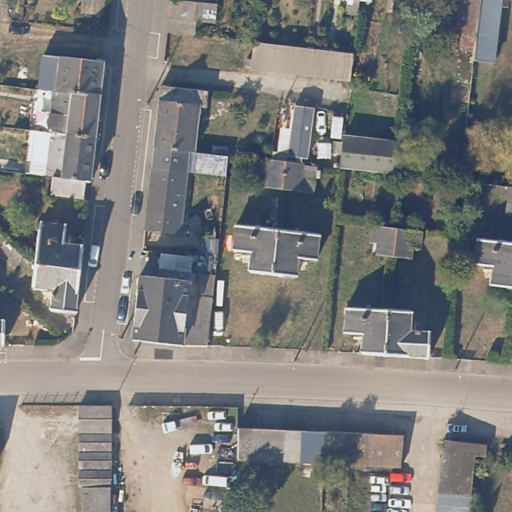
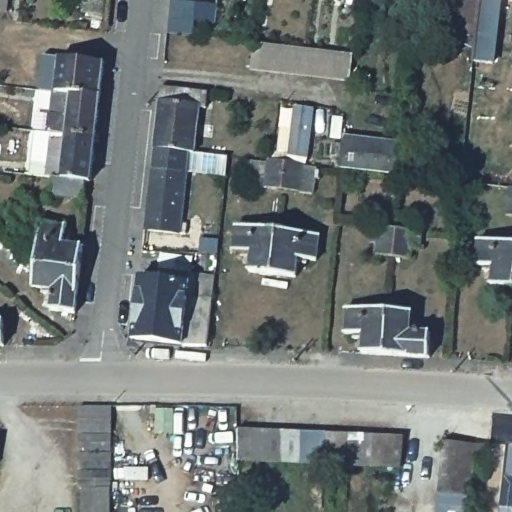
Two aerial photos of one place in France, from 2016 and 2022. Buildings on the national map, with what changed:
unchanged [(0,11),(0,0),(15,0),(14,12),(0,11)]
unchanged [(486,53),(467,50),(473,0),(493,0),(487,46),(486,53)]
unchanged [(174,33),(175,19),(177,1),(220,6),(219,25),(200,23),(198,36),(174,33)]
unchanged [(311,48),(357,54),(354,80),(255,67),(258,41),(311,48)]
unchanged [(60,51),(103,56),(100,91),(57,86),(60,51)]
unchanged [(207,85),(205,102),(198,101),(193,148),(154,144),(160,80),(207,85)]
unchanged [(48,128),(52,86),(57,86),(100,91),(95,133),(67,130),(48,128)]
unchanged [(311,193),(280,189),(247,186),(250,159),(273,161),(275,149),(277,149),(283,110),(295,112),(295,103),(315,106),(307,169),(315,169),(311,193)]
unchanged [(51,190),(53,173),(47,172),(31,170),(32,157),(35,126),(48,128),(67,130),(95,133),(90,177),(85,177),(83,194),(51,190)]
unchanged [(347,141),(404,148),(400,175),(348,169),(344,168),(347,141)]
unchanged [(229,159),(227,176),(215,175),(217,158),(229,159)]
unchanged [(187,168),(180,229),(144,225),(151,164),(187,168)]
unchanged [(511,215),(512,208),(512,215),(511,215)]
unchanged [(40,219),(65,221),(65,231),(69,232),(69,239),(82,241),(80,263),(36,258),(40,219)]
unchanged [(245,267),(246,254),(240,253),(240,247),(229,245),(232,220),(272,225),(268,269),(245,267)]
unchanged [(422,245),(415,244),(413,254),(397,253),(381,251),(381,240),(374,239),(376,222),(400,224),(425,228),(422,245)]
unchanged [(312,230),(310,255),(297,254),(296,259),(291,259),(289,272),(268,269),(272,225),(312,230)]
unchanged [(490,281),(491,268),(483,267),(484,261),(473,260),(476,234),(512,238),(512,283),(490,281)]
unchanged [(80,263),(75,307),(50,304),(51,290),(42,289),(43,284),(33,283),(36,258),(80,263)]
unchanged [(159,263),(190,267),(189,280),(213,283),(210,304),(206,351),(185,350),(131,344),(139,280),(156,283),(159,263)]
unchanged [(360,348),(360,335),(351,335),(351,329),(341,328),(343,302),(386,304),(384,349),(360,348)]
unchanged [(410,306),(410,317),(415,318),(414,327),(430,328),(428,352),(384,349),(386,304),(410,306)]
unchanged [(110,408),(110,427),(80,426),(80,407),(110,408)]
unchanged [(222,502),(226,502),(228,456),(229,422),(245,423),(265,424),(280,424),(296,426),(302,426),(321,427),(342,428),(367,429),(380,431),(397,432),(394,465),(377,464),(363,464),(340,463),(318,462),(297,460),(295,460),(278,459),(263,458),(244,457),(240,457),(241,512),(222,512),(222,502)]
unchanged [(110,433),(110,446),(80,445),(80,432),(110,433)]
unchanged [(481,439),(481,454),(470,454),(466,512),(431,512),(437,437),(481,439)]
unchanged [(110,452),(109,464),(80,464),(80,452),(110,452)]
unchanged [(109,472),(109,484),(79,484),(79,472),(109,472)]
unchanged [(110,489),(110,512),(82,512),(82,489),(110,489)]

